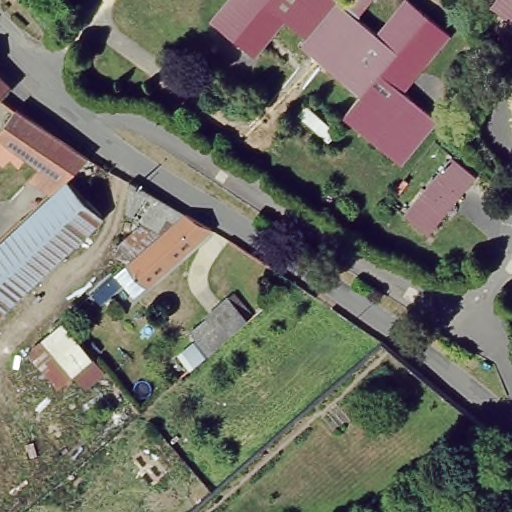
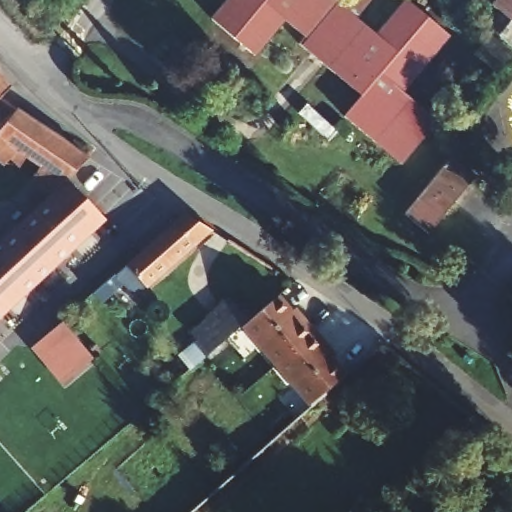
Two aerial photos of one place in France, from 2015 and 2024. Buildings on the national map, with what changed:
unchanged [(380,30),(406,0),(408,0),(445,33),(400,90),(434,120),(394,166),(339,119),(354,101),(298,52),(305,44),(288,26),(255,63),(210,22),(229,0),(338,0),(336,1),(345,8),(351,0),(376,0),(363,15),(380,30)]
unchanged [(494,0),(512,0),(512,30),(488,8),(494,0)]
unchanged [(18,91),(11,99),(3,106),(0,103),(0,73),(18,91)]
unchanged [(4,136),(20,118),(92,161),(66,186),(65,187),(4,136)]
unchanged [(475,173),(429,228),(407,210),(455,154),(475,173)]
unchanged [(66,186),(102,221),(0,320),(0,250),(65,187),(66,186)]
unchanged [(181,218),(210,237),(130,302),(118,288),(96,306),(88,298),(160,237),(181,218)]
unchanged [(250,314),(205,353),(193,339),(201,333),(196,327),(212,313),(210,309),(230,291),(250,314)]
new [(273,298),(287,313),(290,311),(299,322),(301,319),(324,345),(321,347),(330,357),(328,360),(342,376),(305,409),(236,331),(273,298)]
unchanged [(56,331),(85,365),(68,379),(39,346),(56,331)]

